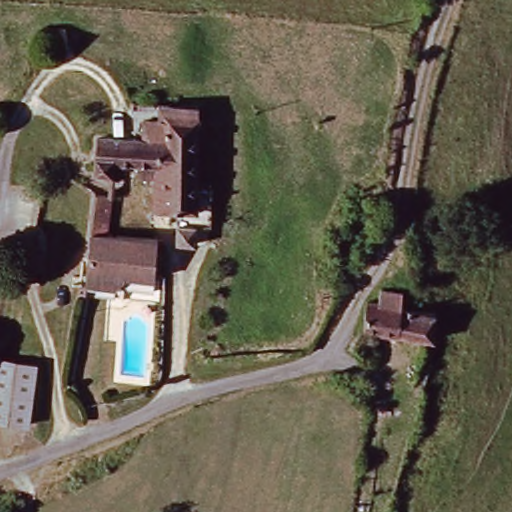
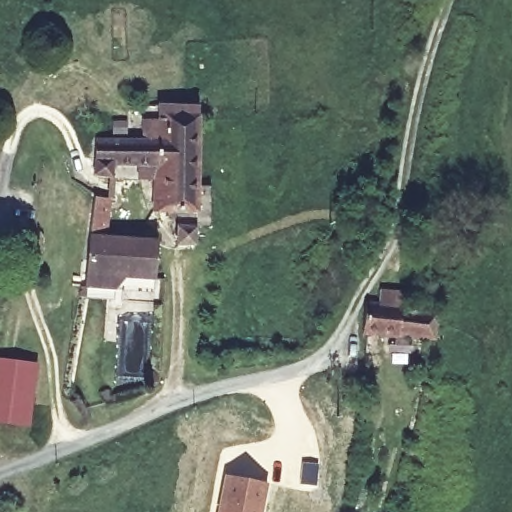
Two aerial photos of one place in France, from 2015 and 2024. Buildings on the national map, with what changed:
unchanged [(121,180),(121,165),(108,164),(108,176),(89,175),(92,140),(136,142),(137,120),(149,120),(149,115),(150,97),(194,100),(193,117),(193,205),(201,207),(201,220),(191,220),(191,212),(146,211),(146,195),(145,180),(121,180)]
unchanged [(81,285),(86,210),(104,210),(101,247),(149,250),(147,289),(81,285)]
unchanged [(191,226),(188,245),(171,243),(173,225),(191,226)]
unchanged [(376,293),(398,295),(396,310),(430,315),(428,341),(359,333),(363,306),(374,308),(376,293)]
unchanged [(33,365),(25,428),(0,424),(0,361),(33,365)]
new [(224,473),(268,481),(262,512),(216,512),(224,473)]

